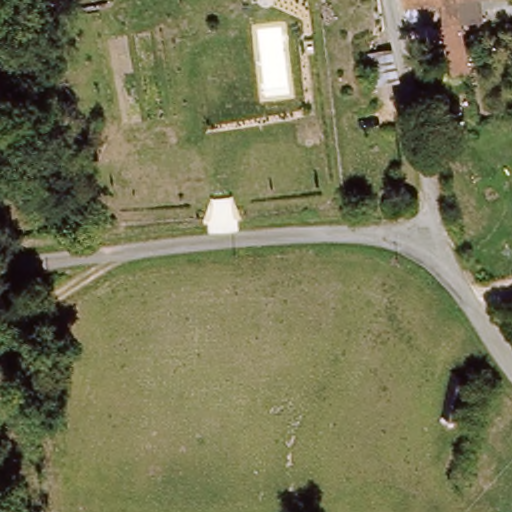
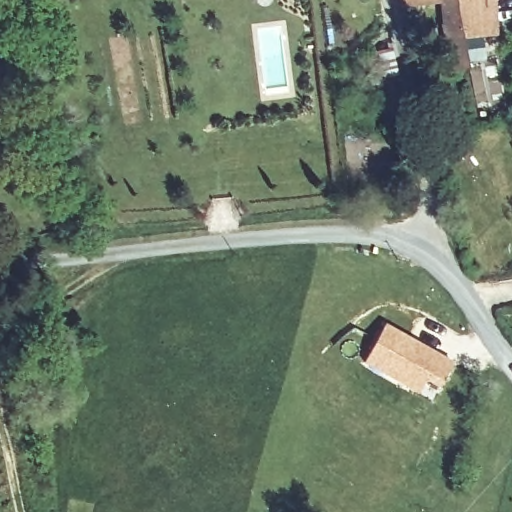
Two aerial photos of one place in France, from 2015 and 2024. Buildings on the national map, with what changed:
unchanged [(463,15),(414,15),(414,0),(481,0),(482,12),(491,78),(472,78),(463,15)]
unchanged [(481,0),(512,0),(512,1),(501,1),(500,11),(482,12),(481,0)]
new [(366,363),(387,324),(455,361),(440,387),(427,379),(420,392),(366,363)]

